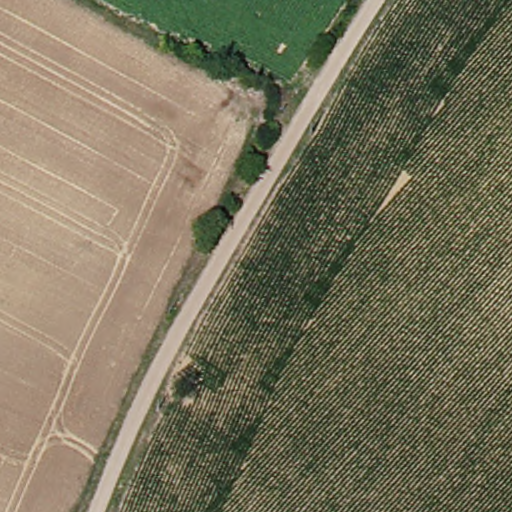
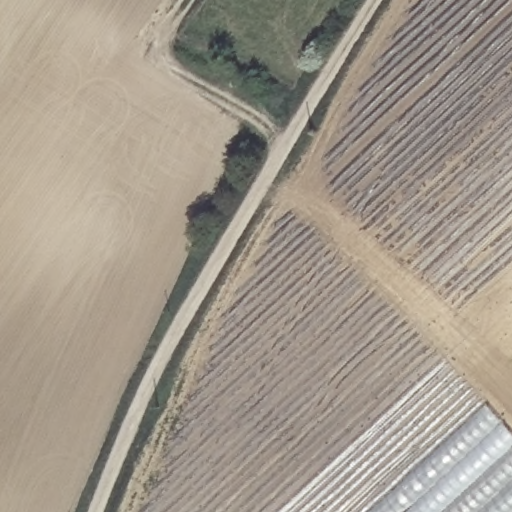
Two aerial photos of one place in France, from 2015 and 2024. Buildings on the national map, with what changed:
new [(370,512),(487,404),(512,431),(512,512),(370,512)]

